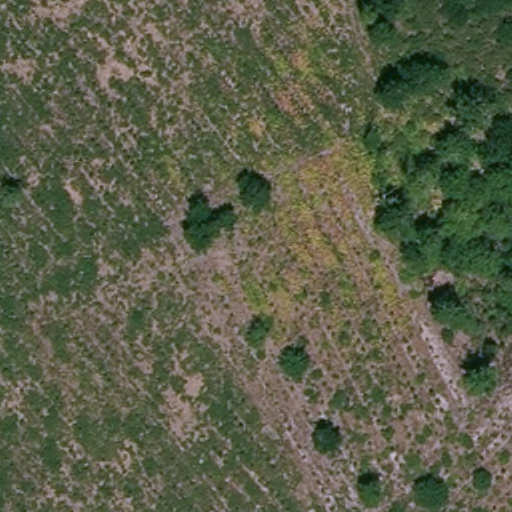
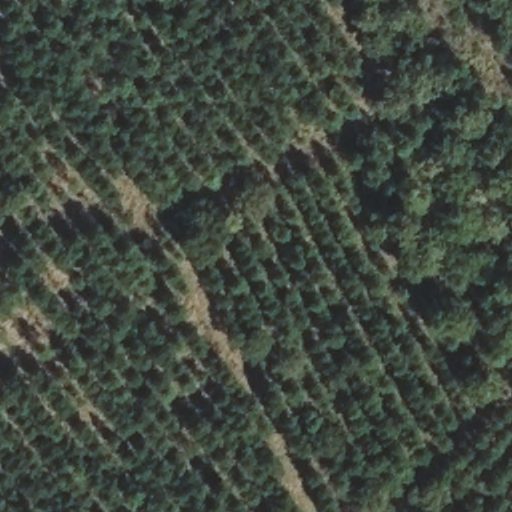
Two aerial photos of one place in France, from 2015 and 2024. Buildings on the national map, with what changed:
[]

